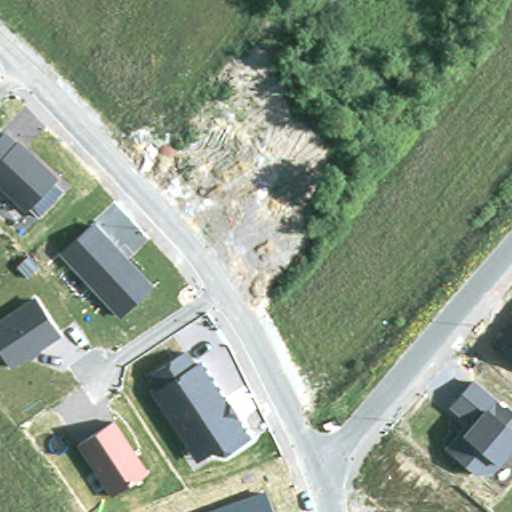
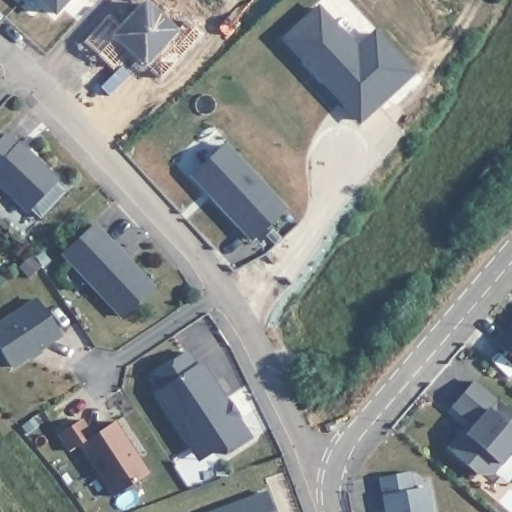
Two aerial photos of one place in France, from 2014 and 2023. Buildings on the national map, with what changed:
new [(40,0),(67,0),(55,14),(40,0)]
new [(355,47),(375,30),(413,75),(358,124),(280,40),(317,7),(355,47)]
unchanged [(27,212),(0,188),(0,136),(5,130),(59,178),(27,212)]
new [(287,208),(250,241),(189,175),(225,141),(287,208)]
unchanged [(155,286),(120,318),(59,253),(94,221),(155,286)]
unchanged [(14,368),(0,348),(0,318),(35,295),(62,336),(14,368)]
unchanged [(495,343),(512,323),(512,357),(495,343)]
unchanged [(197,362),(200,360),(250,437),(224,454),(212,452),(199,460),(153,392),(159,388),(150,374),(188,349),(197,362)]
unchanged [(512,409),(512,454),(495,473),(480,474),(446,447),(467,421),(449,407),(475,377),(512,409)]
unchanged [(150,472),(112,497),(77,445),(115,419),(150,472)]
new [(415,489),(429,487),(433,512),(384,512),(381,495),(379,477),(412,471),(415,489)]
unchanged [(274,512),(205,512),(265,489),(274,512)]

